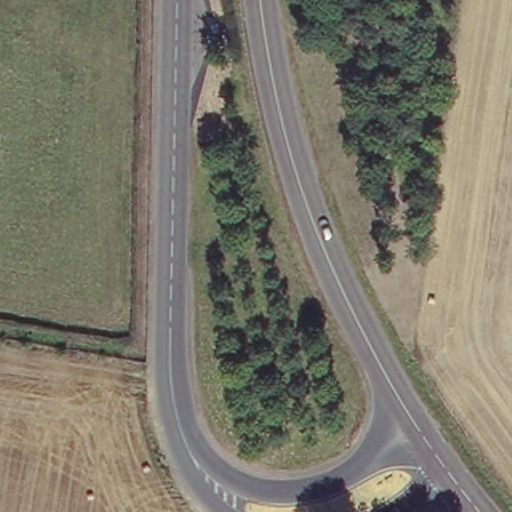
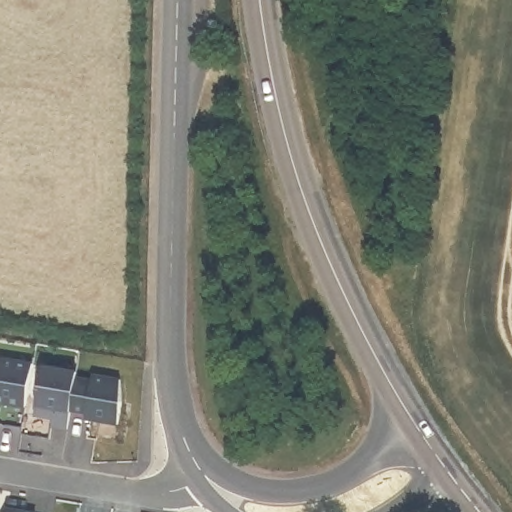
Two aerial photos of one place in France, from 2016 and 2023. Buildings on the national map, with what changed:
new [(26,408),(0,403),(0,359),(33,364),(26,408)]
new [(68,430),(52,427),(53,419),(35,416),(43,366),(77,372),(68,430)]
new [(122,402),(119,425),(86,420),(87,414),(71,411),(76,378),(92,381),(93,375),(121,380),(122,402)]
new [(7,510),(23,512),(7,512),(7,510)]

